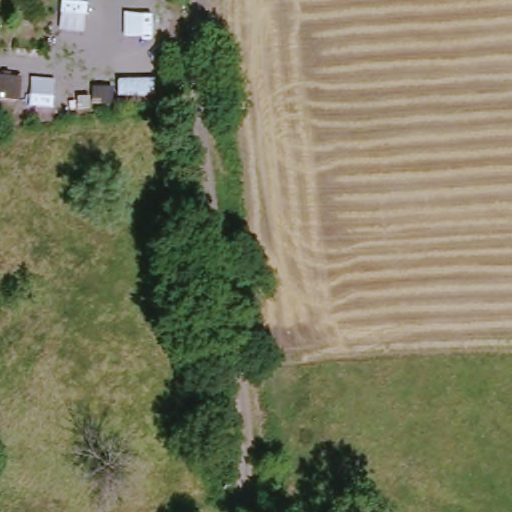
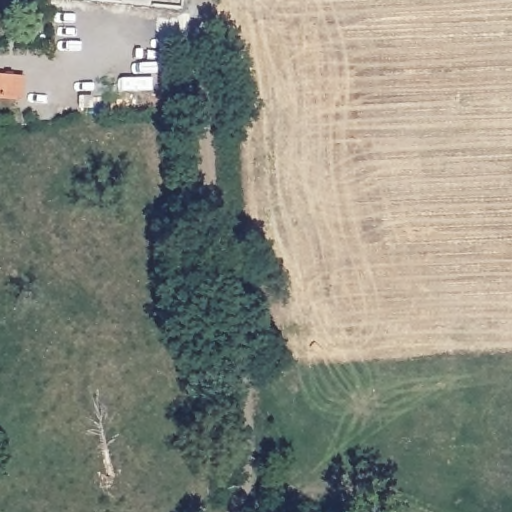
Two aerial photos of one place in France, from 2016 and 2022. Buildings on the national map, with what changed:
unchanged [(15,99),(0,98),(0,76),(17,78),(15,99)]

